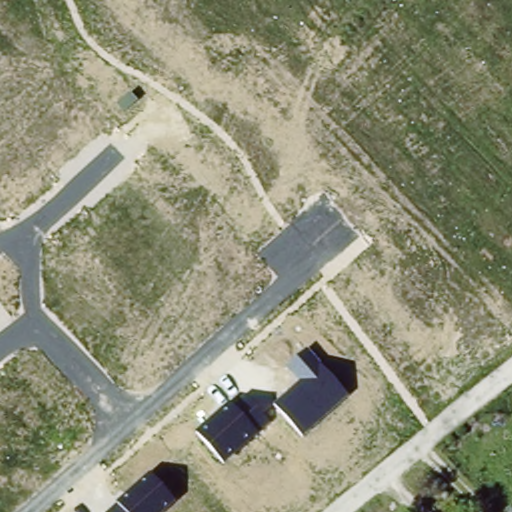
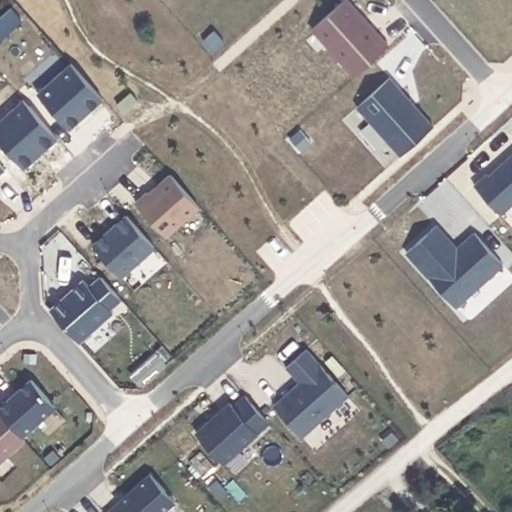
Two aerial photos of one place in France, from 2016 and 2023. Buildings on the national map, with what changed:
new [(345,0),(347,0),(389,46),(355,76),(312,29),(345,0)]
new [(72,62),(104,99),(70,128),(37,91),(72,62)]
new [(390,78),(434,127),(401,156),(357,107),(390,78)]
new [(58,138),(46,150),(43,148),(35,156),(37,158),(24,169),(0,143),(0,121),(23,100),(58,138)]
new [(486,173),(489,176),(512,156),(512,204),(502,213),(474,183),(486,173)]
new [(0,174),(0,164),(5,170),(0,174)]
new [(147,193),(149,194),(171,175),(199,207),(166,237),(136,203),(147,193)]
new [(127,216),(154,248),(123,276),(93,243),(127,216)]
new [(439,225),(456,246),(474,230),(504,265),(458,307),(430,275),(427,277),(406,253),(439,225)]
new [(84,278),(91,286),(101,276),(122,299),(110,310),(112,312),(81,342),(51,309),(84,278)]
unchanged [(273,404),(300,381),(287,367),(306,349),(348,393),(303,436),(273,404)]
new [(57,406),(24,436),(27,440),(0,462),(0,406),(33,378),(57,406)]
unchanged [(232,400),(261,429),(225,462),(197,431),(232,400)]
unchanged [(176,500),(164,512),(108,512),(149,473),(176,500)]

